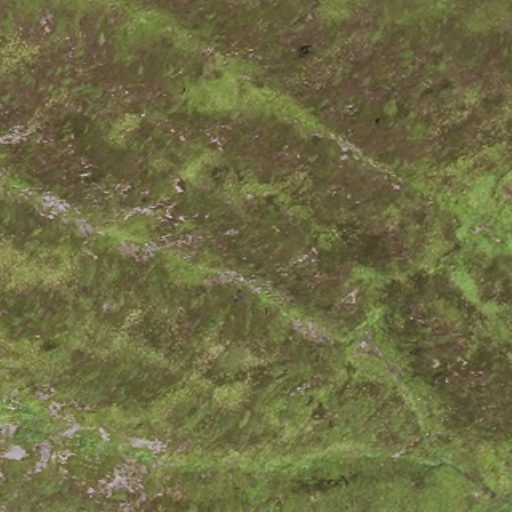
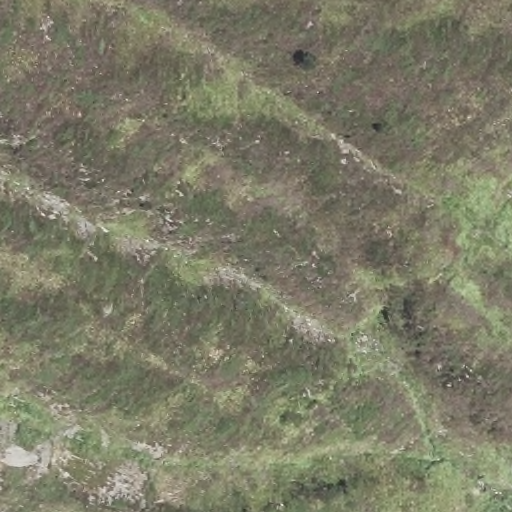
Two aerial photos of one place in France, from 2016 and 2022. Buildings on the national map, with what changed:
[]

